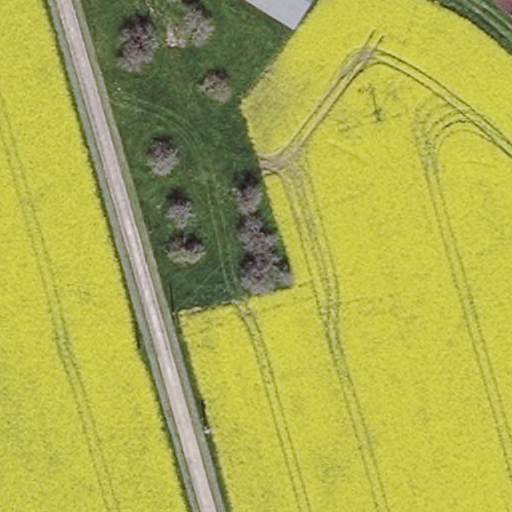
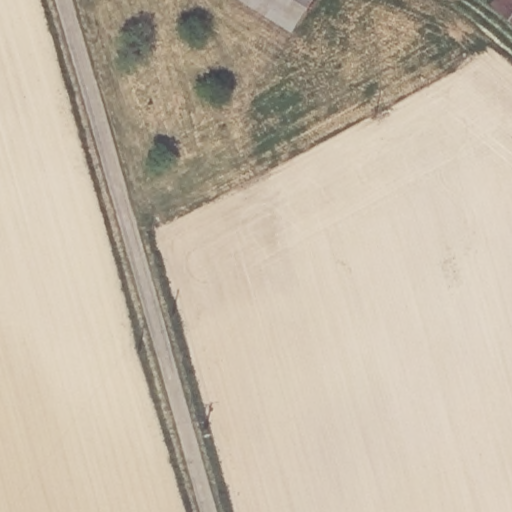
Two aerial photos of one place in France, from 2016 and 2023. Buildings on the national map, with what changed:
unchanged [(288,24),(249,0),(305,0),(288,24)]
unchanged [(500,0),(512,0),(512,10),(500,0)]

